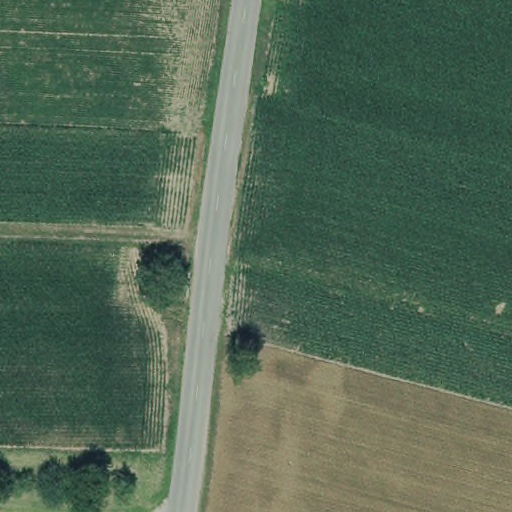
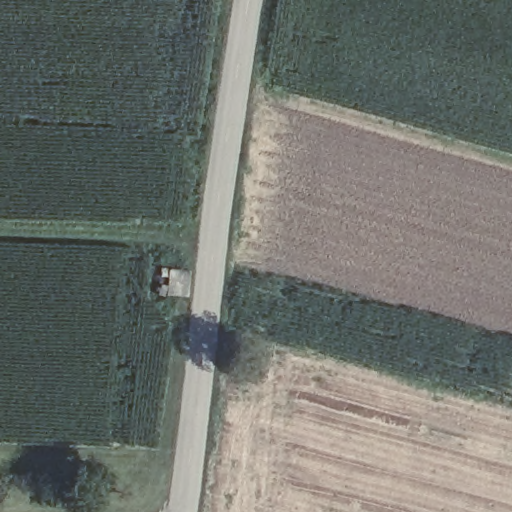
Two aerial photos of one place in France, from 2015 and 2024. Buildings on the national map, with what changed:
unchanged [(164,297),(164,267),(192,270),(187,298),(164,297)]

